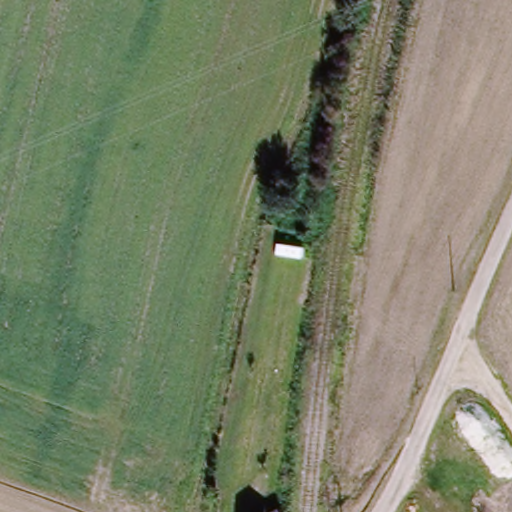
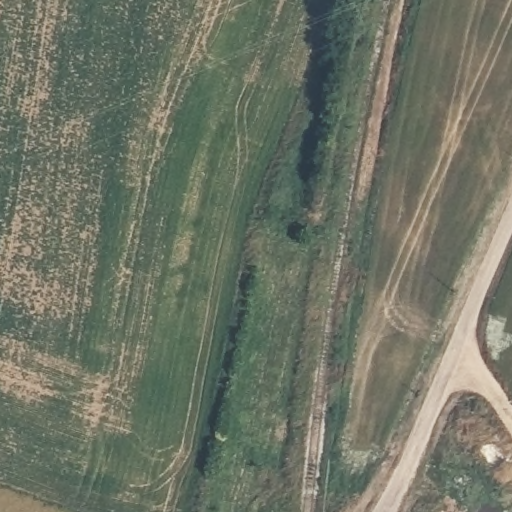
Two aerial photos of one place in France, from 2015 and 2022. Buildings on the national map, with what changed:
[]

